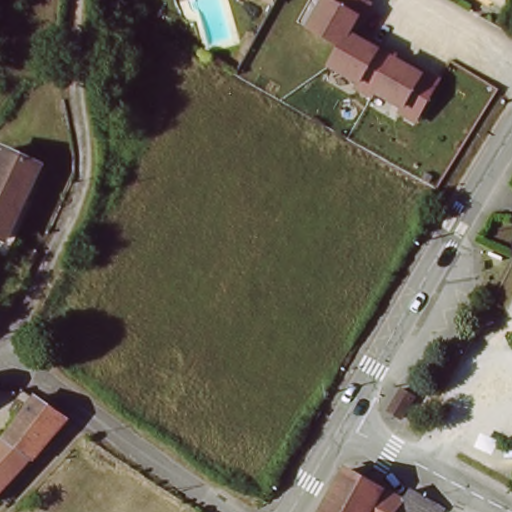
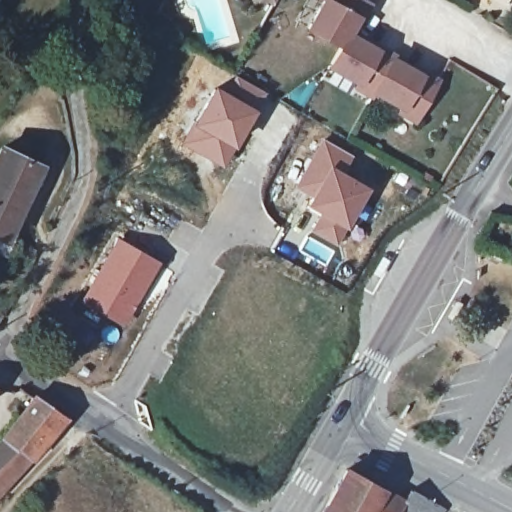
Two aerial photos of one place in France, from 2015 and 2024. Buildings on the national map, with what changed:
unchanged [(281,7),(268,0),(285,0),(285,1),(281,7)]
unchanged [(425,124),(331,72),(344,50),(313,34),(329,2),(325,0),(372,0),(377,2),(365,35),(449,82),(425,124)]
new [(233,75),(265,91),(256,109),(221,167),(181,143),(214,86),(225,91),(233,75)]
new [(321,138),(352,154),(343,171),(369,186),(335,244),(310,230),(318,213),(304,205),(309,196),(294,187),(321,138)]
unchanged [(33,154),(40,158),(0,246),(0,145),(3,139),(33,154)]
new [(118,237),(160,261),(120,325),(79,302),(118,237)]
unchanged [(427,392),(413,416),(409,413),(399,407),(412,383),(423,389),(427,392)]
unchanged [(63,415),(40,439),(0,481),(0,431),(34,394),(63,415)]
unchanged [(436,506),(432,512),(319,512),(323,504),(342,467),(399,497),(404,488),(436,506)]

